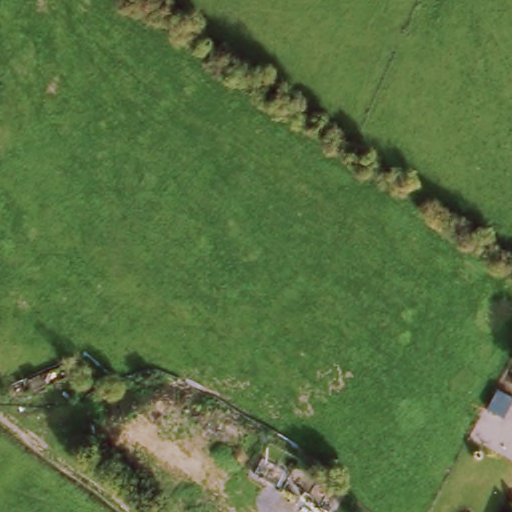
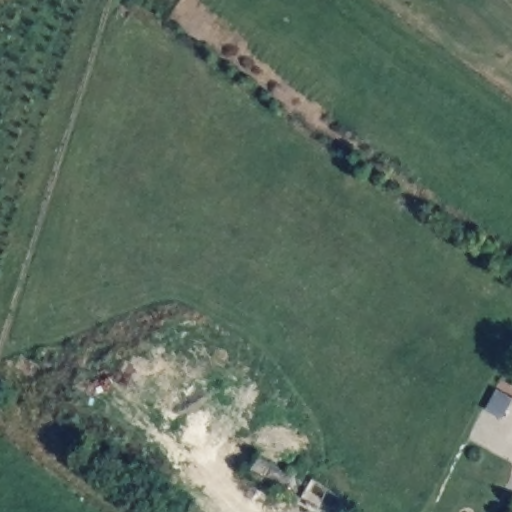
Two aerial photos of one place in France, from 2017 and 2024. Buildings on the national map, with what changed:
[]

